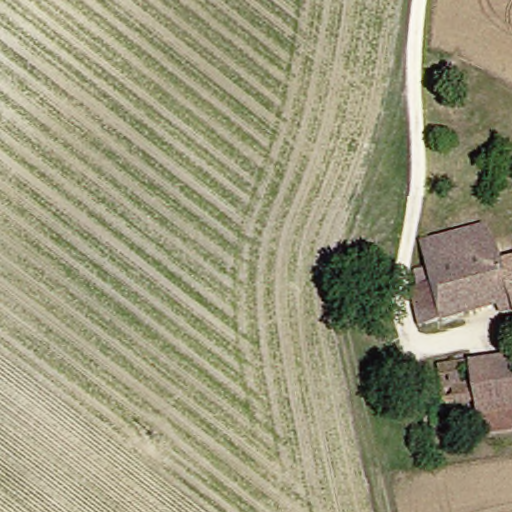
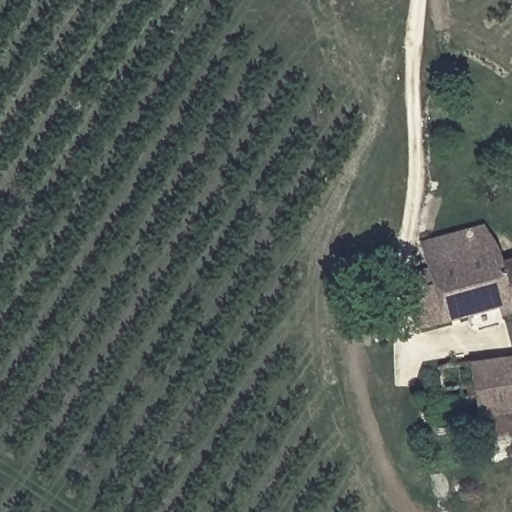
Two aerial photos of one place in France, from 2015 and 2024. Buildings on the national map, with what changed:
unchanged [(429,324),(419,290),(432,285),(429,268),(444,263),(439,240),(497,223),(512,255),(512,313),(508,300),(429,324)]
unchanged [(479,366),(512,362),(512,433),(491,437),(485,401),(479,366)]
unchanged [(440,410),(438,395),(453,391),(450,371),(479,366),(485,401),(440,410)]

